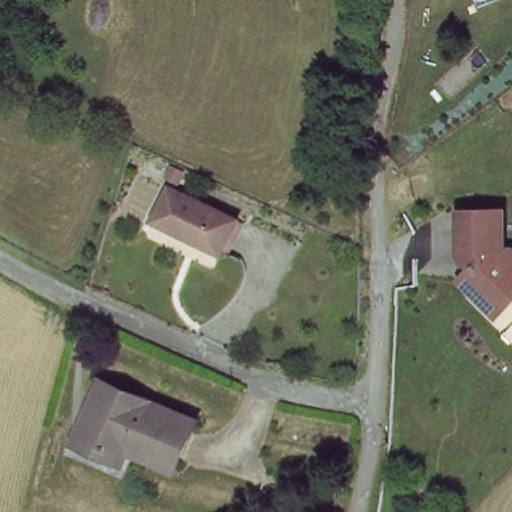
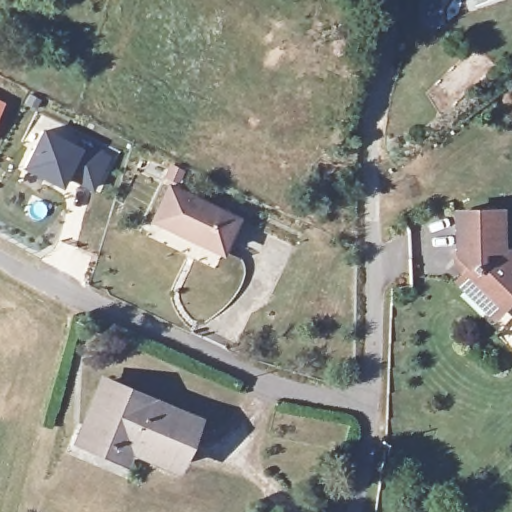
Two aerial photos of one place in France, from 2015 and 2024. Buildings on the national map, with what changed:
new [(0,112),(0,101),(5,104),(0,112)]
new [(67,177),(60,188),(21,168),(42,129),(75,148),(79,141),(110,157),(92,191),(67,177)]
unchanged [(237,220),(224,250),(209,243),(206,246),(158,226),(172,191),(237,220)]
unchanged [(457,284),(472,271),(465,268),(464,214),(502,212),(501,247),(507,249),(512,253),(512,294),(490,317),(457,284)]
unchanged [(108,452),(81,441),(103,385),(193,418),(176,462),(130,445),(125,458),(108,452)]

